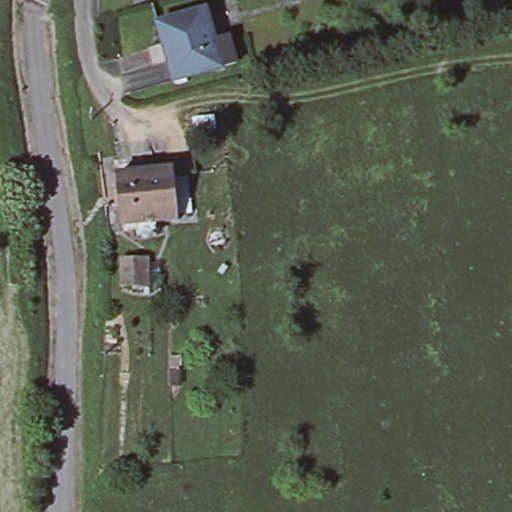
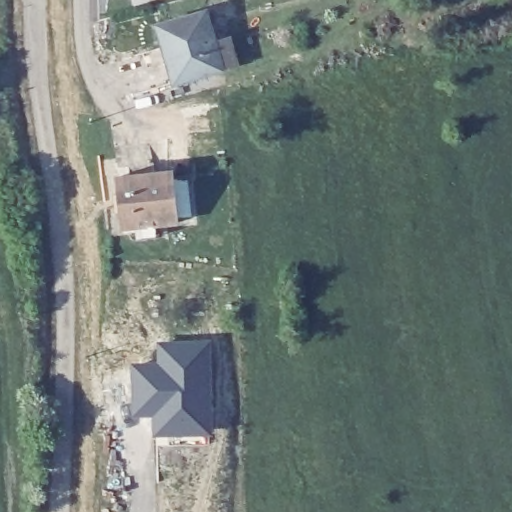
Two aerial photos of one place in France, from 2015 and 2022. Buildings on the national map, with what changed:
unchanged [(162,26),(210,12),(218,44),(170,56),(162,26)]
unchanged [(170,56),(218,44),(227,72),(179,85),(170,56)]
unchanged [(117,176),(173,169),(178,220),(122,227),(117,176)]
unchanged [(120,258),(150,257),(152,261),(162,260),(163,292),(152,292),(152,287),(121,287),(120,258)]
new [(209,341),(212,427),(160,430),(160,410),(140,410),(138,365),(165,363),(163,342),(209,341)]

